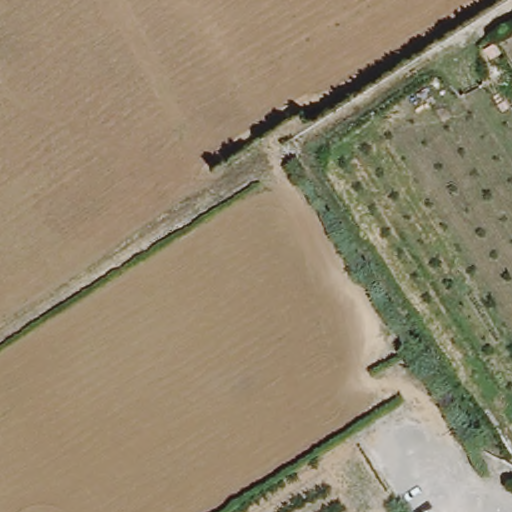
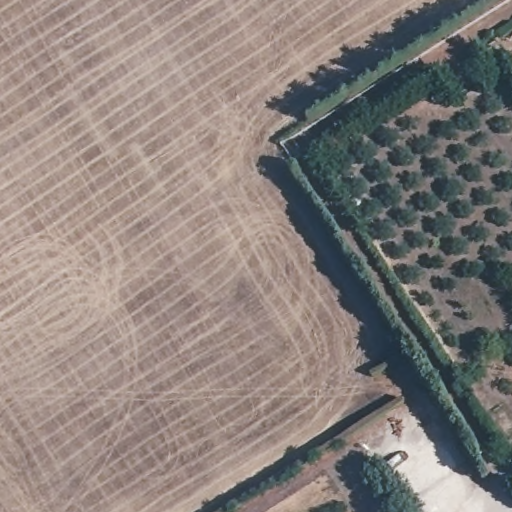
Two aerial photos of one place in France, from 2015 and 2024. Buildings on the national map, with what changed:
unchanged [(467,447),(477,440),(483,450),(473,456),(467,447)]

